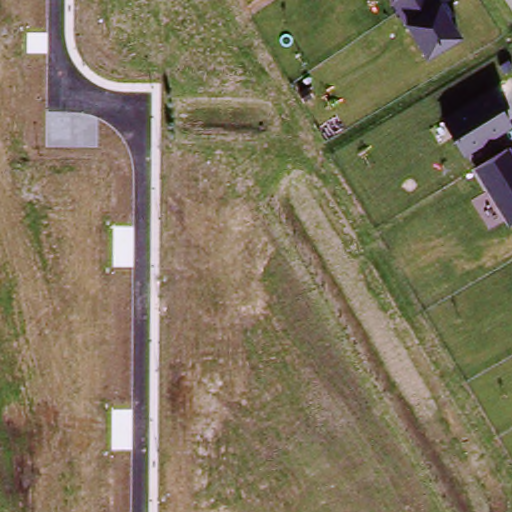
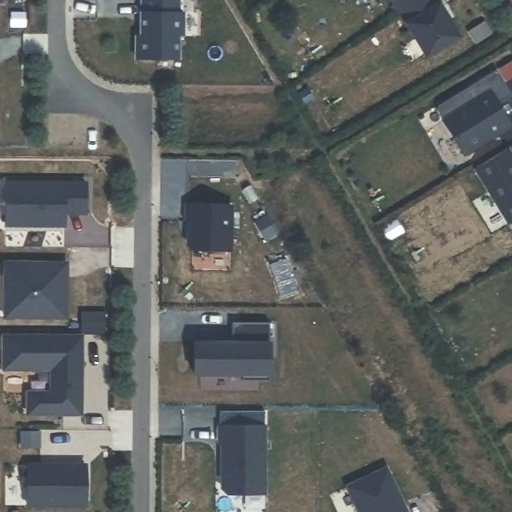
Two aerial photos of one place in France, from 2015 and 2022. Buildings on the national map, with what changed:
new [(137,35),(142,35),(142,11),(143,0),(176,0),(176,11),(178,11),(177,58),(137,57),(137,35)]
unchanged [(460,37),(426,58),(391,0),(437,0),(460,37)]
unchanged [(465,155),(442,118),(488,90),(511,125),(465,155)]
unchanged [(509,225),(473,169),(509,149),(512,154),(512,223),(509,225)]
new [(87,177),(88,211),(65,210),(66,223),(2,224),(2,178),(87,177)]
new [(185,202),(231,204),(230,247),(192,247),(187,242),(187,219),(185,219),(185,202)]
new [(31,260),(65,260),(65,275),(64,314),(4,313),(4,260),(31,260)]
new [(231,342),(231,320),(270,319),(272,341),(272,375),(195,377),(194,342),(231,342)]
new [(2,332),(81,333),(81,342),(80,362),(80,383),(80,412),(26,412),(26,395),(51,395),(52,360),(2,360),(2,341),(2,332)]
new [(264,422),(267,491),(228,495),(220,486),(218,442),(215,442),(215,422),(264,422)]
new [(407,512),(360,512),(347,480),(389,464),(404,502),(407,512)]
new [(27,465),(85,466),(85,506),(27,505),(27,465)]

